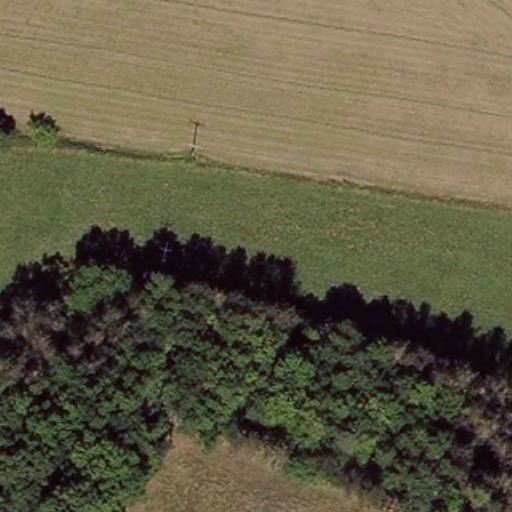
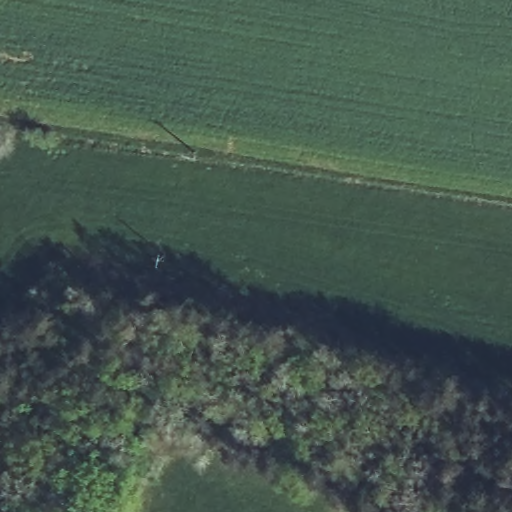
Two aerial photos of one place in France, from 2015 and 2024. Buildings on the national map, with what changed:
[]

